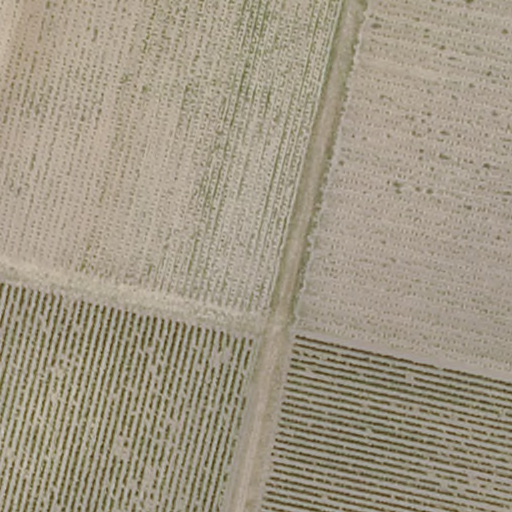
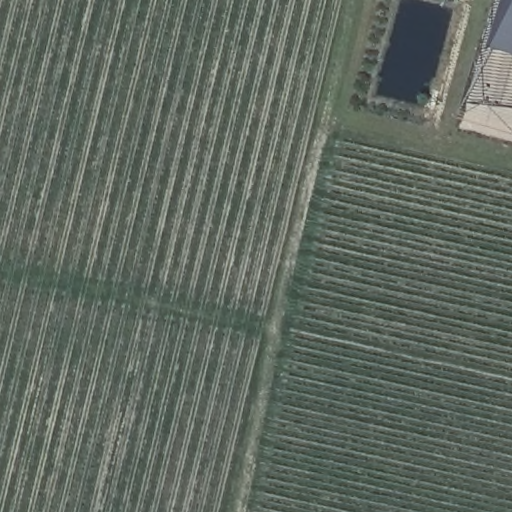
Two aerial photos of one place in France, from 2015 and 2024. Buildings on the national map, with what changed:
new [(495,47),(508,0),(512,0),(512,52),(495,47)]

